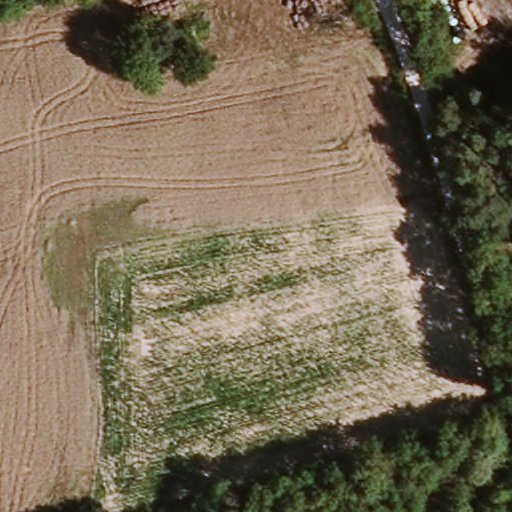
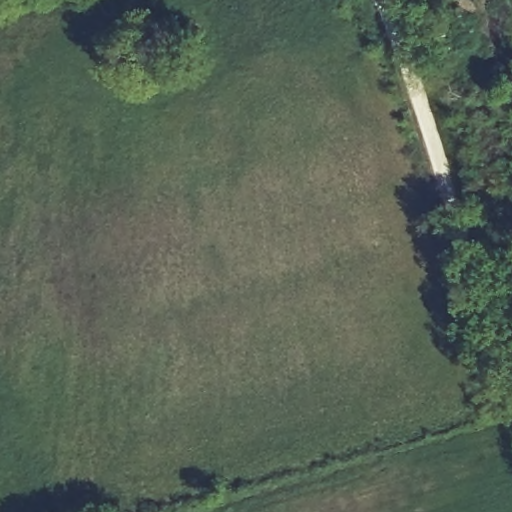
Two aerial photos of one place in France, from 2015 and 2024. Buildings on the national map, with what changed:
unchanged [(187,61),(165,70),(152,50),(177,43),(187,61)]

